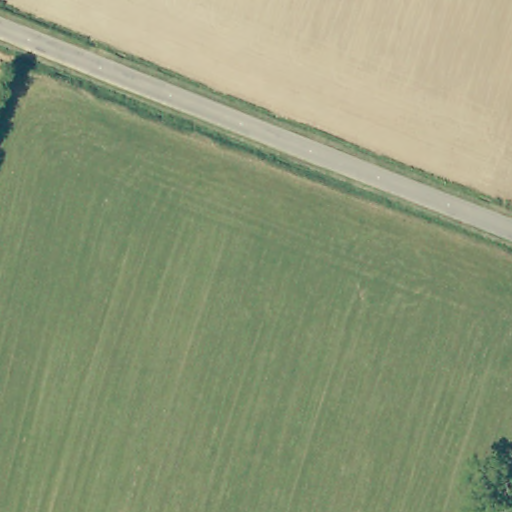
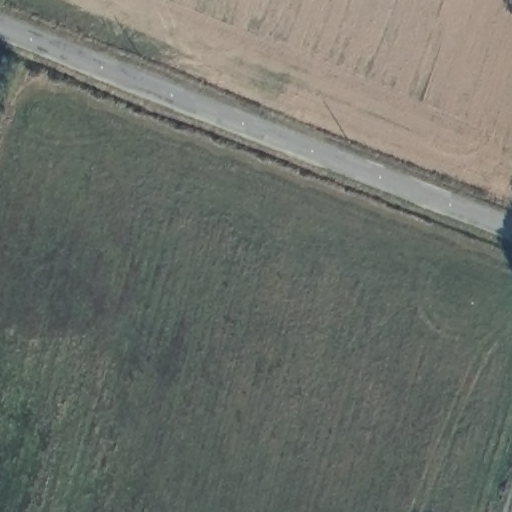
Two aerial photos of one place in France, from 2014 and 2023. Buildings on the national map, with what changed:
[]

